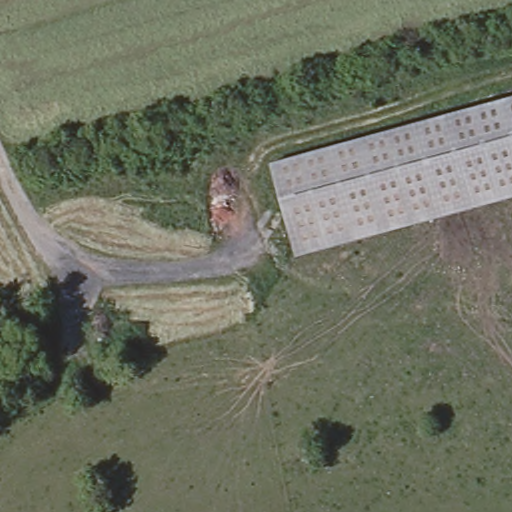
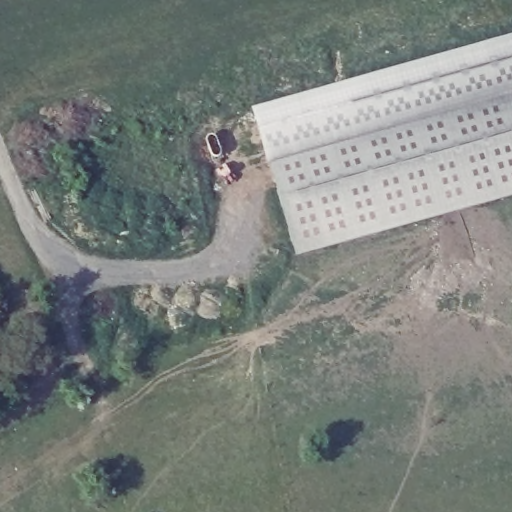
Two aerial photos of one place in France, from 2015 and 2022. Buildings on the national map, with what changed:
new [(273,160),(257,102),(512,33),(512,94),(273,160)]
unchanged [(277,174),(273,160),(512,94),(512,106),(277,174)]
unchanged [(284,200),(277,174),(512,106),(512,137),(284,200)]
unchanged [(291,225),(284,200),(512,137),(512,166),(291,225)]
unchanged [(298,251),(291,225),(512,166),(512,192),(298,251)]

